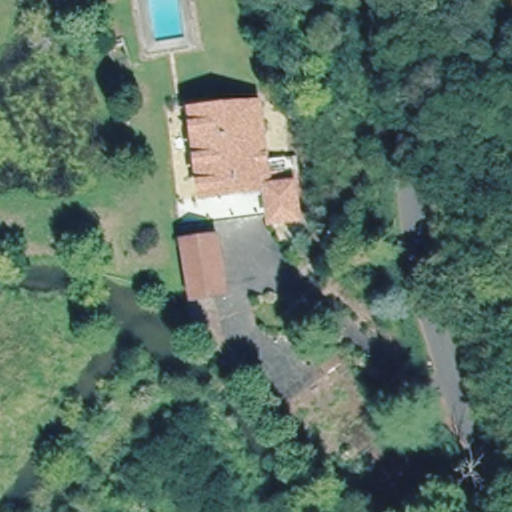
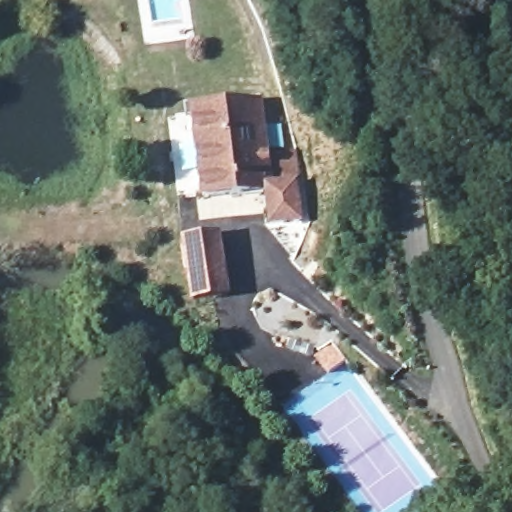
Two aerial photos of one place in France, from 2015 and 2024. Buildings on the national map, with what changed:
unchanged [(277,170),(275,155),(290,153),(295,203),(269,206),(267,186),(202,193),(192,107),(257,100),(263,156),(265,171),(277,170)]
unchanged [(177,242),(210,234),(223,293),(191,301),(177,242)]

